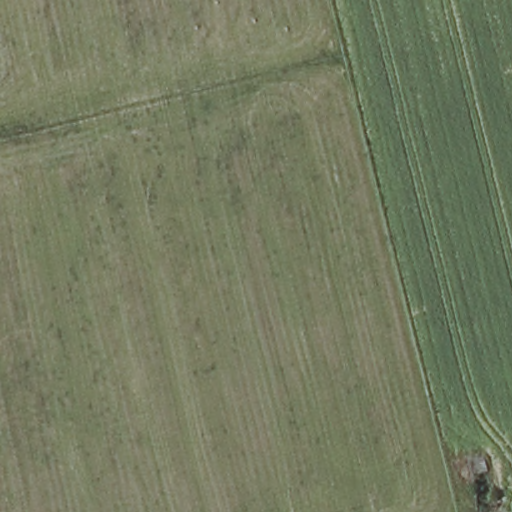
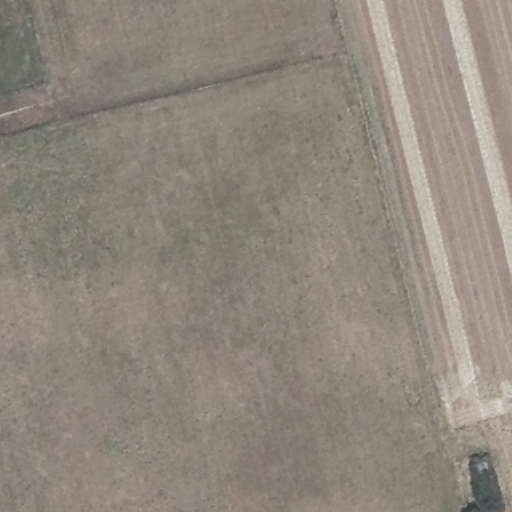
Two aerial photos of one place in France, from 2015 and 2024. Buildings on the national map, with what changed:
[]

